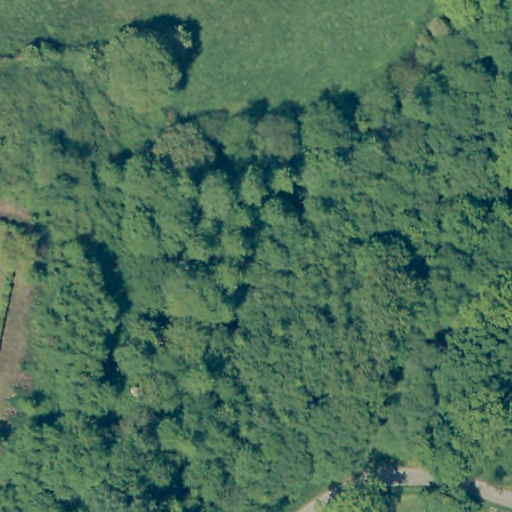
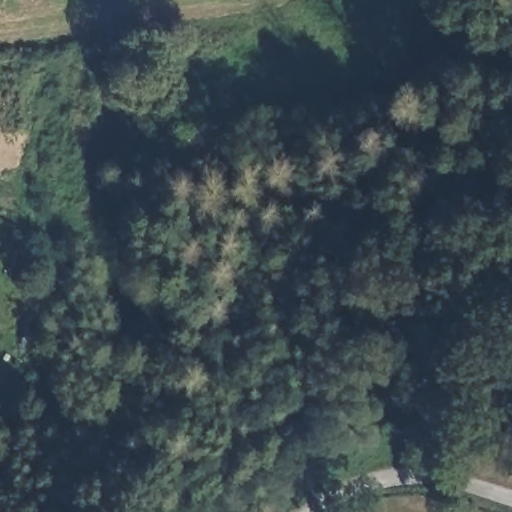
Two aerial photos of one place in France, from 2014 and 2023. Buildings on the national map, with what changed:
[]

